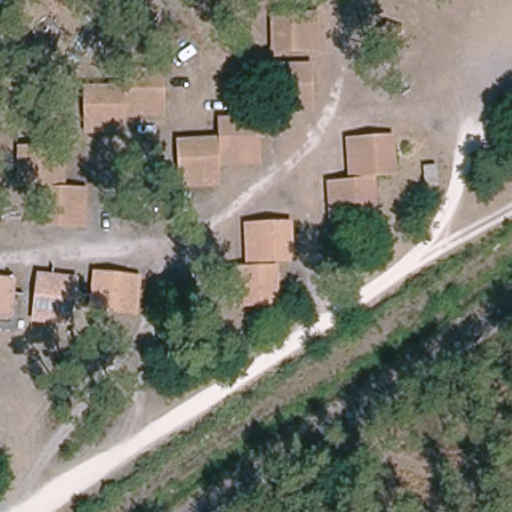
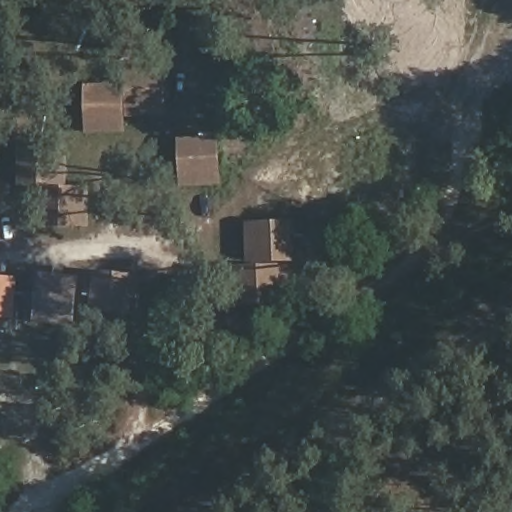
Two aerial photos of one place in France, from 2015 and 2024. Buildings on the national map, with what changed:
unchanged [(276,53),(273,14),(325,12),(322,53),(276,53)]
unchanged [(392,56),(378,50),(376,34),(391,23),(405,39),(392,56)]
unchanged [(312,103),(275,104),(275,67),(312,66),(312,103)]
unchanged [(170,109),(132,108),(132,72),(169,71),(170,109)]
unchanged [(127,124),(91,125),(90,87),(127,87),(127,124)]
unchanged [(264,156),(227,157),(227,119),(264,119),(264,156)]
unchanged [(401,175),(363,178),(362,140),(398,137),(401,175)]
unchanged [(223,177),(186,178),(184,141),(222,139),(223,177)]
unchanged [(61,186),(24,185),(26,147),(62,148),(61,186)]
unchanged [(425,167),(436,166),(437,184),(426,184),(425,167)]
unchanged [(382,218),(345,221),(342,183),(380,181),(382,218)]
unchanged [(83,227),(46,226),(47,188),(84,190),(83,227)]
unchanged [(297,261),(260,262),(259,225),(296,224),(297,261)]
unchanged [(283,305),(246,306),(245,269),(282,268),(283,305)]
unchanged [(137,277),(133,314),(96,310),(101,273),(137,277)]
unchanged [(0,318),(0,279),(15,280),(12,319),(0,318)]
unchanged [(77,321),(40,317),(44,280),(82,285),(77,321)]

